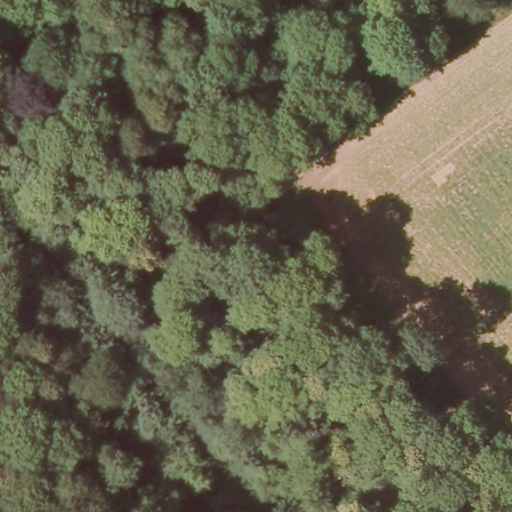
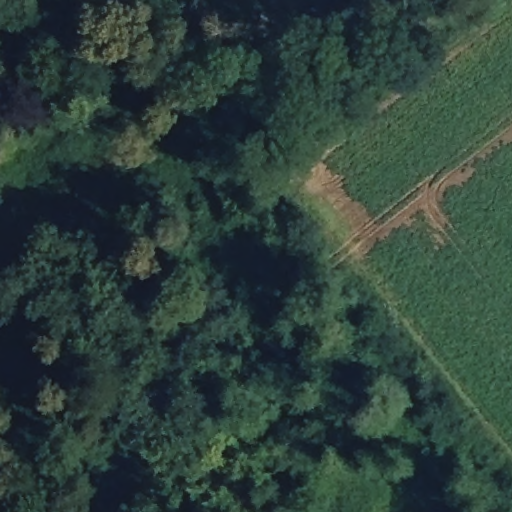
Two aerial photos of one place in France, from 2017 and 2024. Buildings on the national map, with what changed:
unchanged [(76,108),(62,116),(50,95),(64,86),(76,108)]

